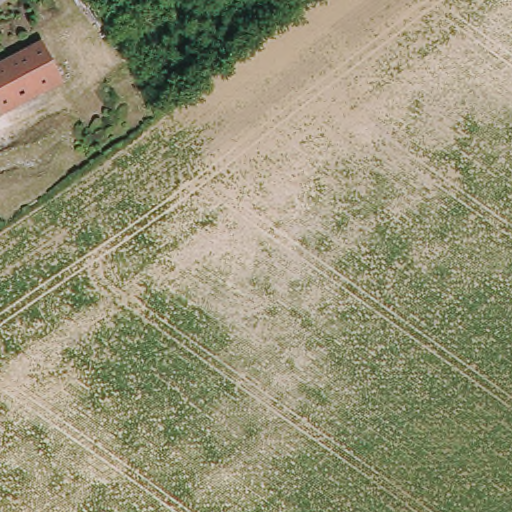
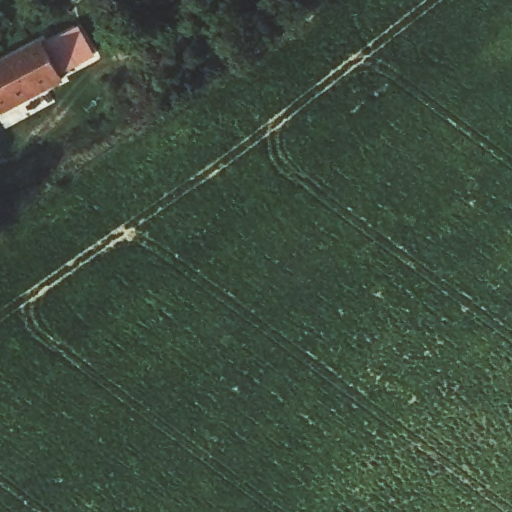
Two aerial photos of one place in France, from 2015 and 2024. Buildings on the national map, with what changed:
new [(80,26),(96,57),(62,75),(46,44),(80,26)]
unchanged [(64,77),(2,110),(0,107),(0,62),(43,39),(64,77)]

